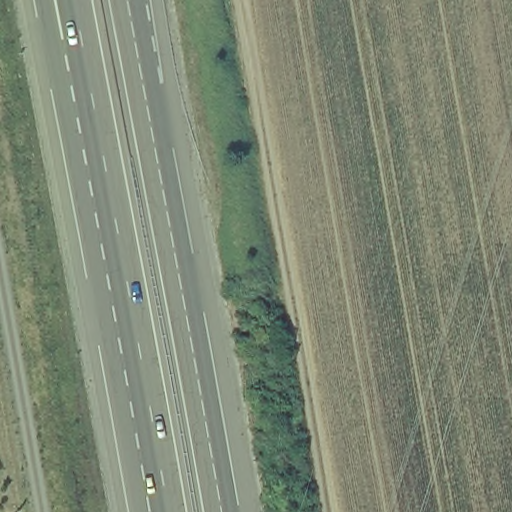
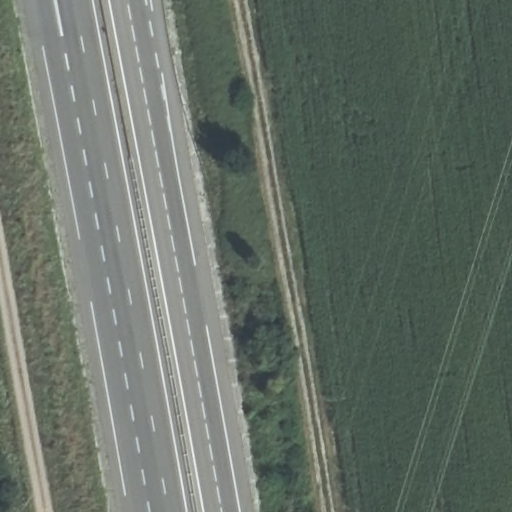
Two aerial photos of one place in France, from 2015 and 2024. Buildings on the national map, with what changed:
[]

